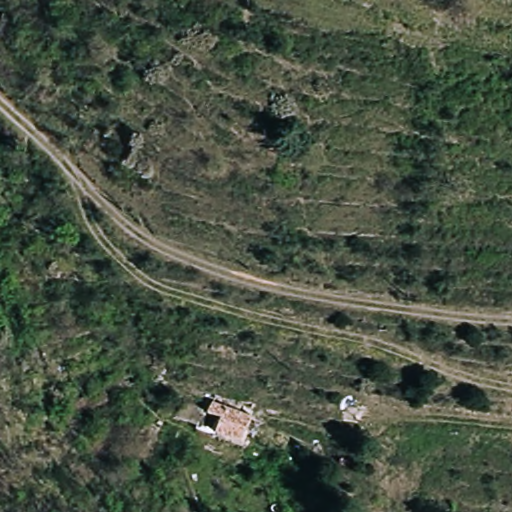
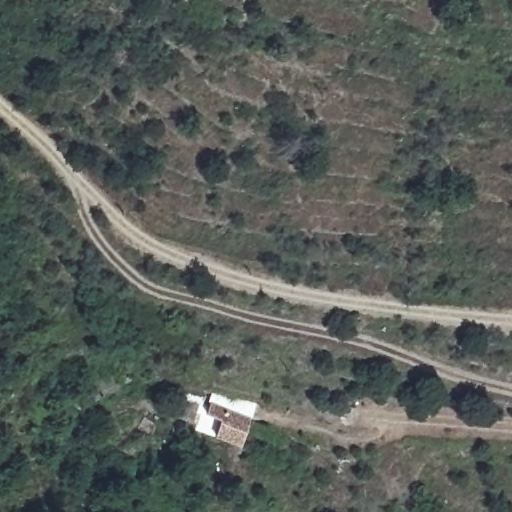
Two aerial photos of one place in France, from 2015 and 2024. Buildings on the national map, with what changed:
unchanged [(223,416),(211,412),(215,397),(218,390),(256,401),(243,440),(218,430),(223,416)]

